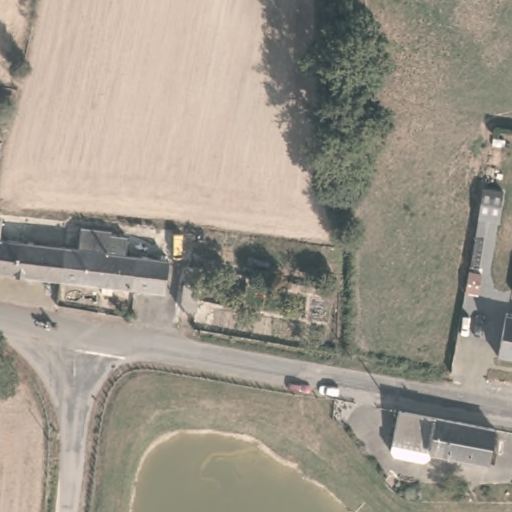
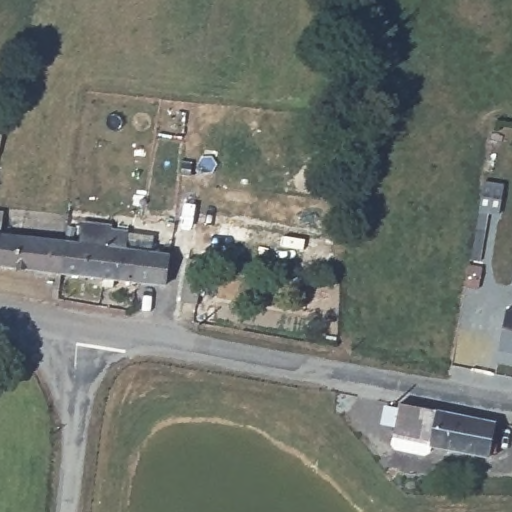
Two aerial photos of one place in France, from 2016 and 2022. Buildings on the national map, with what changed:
unchanged [(6,123),(8,127),(7,131),(10,131),(5,156),(0,156),(0,119),(3,120),(6,123)]
unchanged [(12,236),(70,243),(66,276),(0,268),(0,219),(13,220),(12,236)]
unchanged [(66,276),(70,243),(83,244),(90,245),(92,225),(116,227),(116,231),(133,232),(132,252),(175,257),(171,288),(66,276)]
unchanged [(199,305),(183,303),(189,260),(206,263),(199,305)]
unchanged [(512,311),(512,352),(498,350),(505,310),(512,311)]
unchanged [(496,454),(438,444),(436,456),(403,450),(399,443),(407,403),(502,420),(496,454)]

